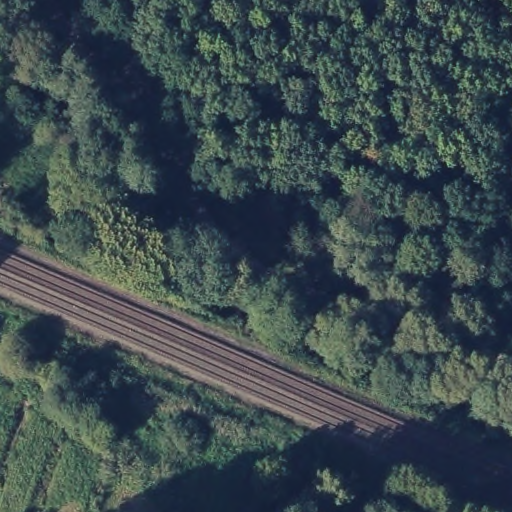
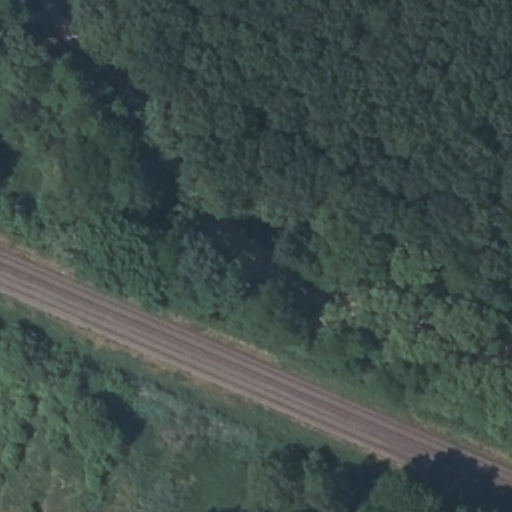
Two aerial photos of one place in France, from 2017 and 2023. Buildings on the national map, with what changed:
[]

